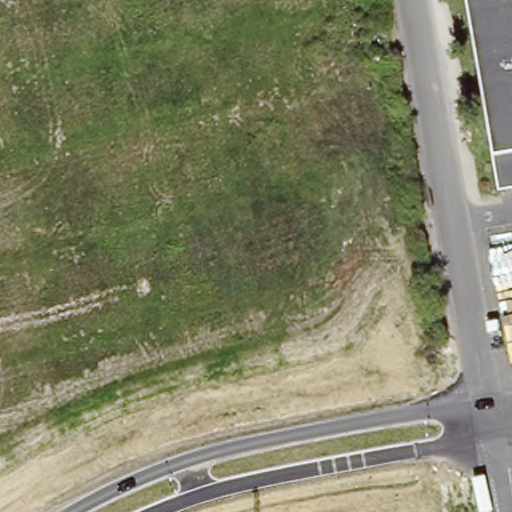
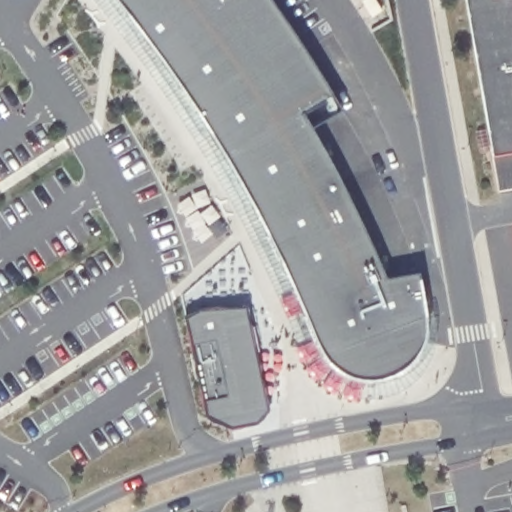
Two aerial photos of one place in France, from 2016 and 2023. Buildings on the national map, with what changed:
new [(283,26),(336,111),(306,129),(319,151),(351,214),(380,277),(412,272),(420,314),(419,341),(410,359),(386,377),(356,382),(336,375),(315,355),(277,271),(232,182),(173,88),(120,16),(108,0),(265,0),(283,26)]
unchanged [(495,152),(471,0),(512,0),(512,150),(495,152)]
unchanged [(501,190),(495,152),(512,150),(512,188),(501,190)]
new [(495,255),(512,252),(512,357),(495,255)]
new [(195,309),(241,306),(265,410),(253,423),(227,429),(202,417),(180,317),(195,309)]

